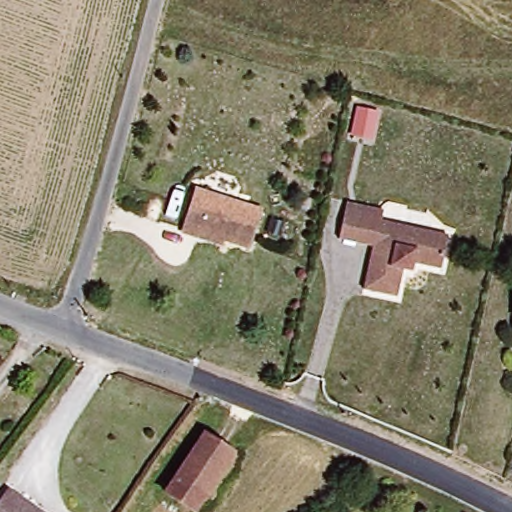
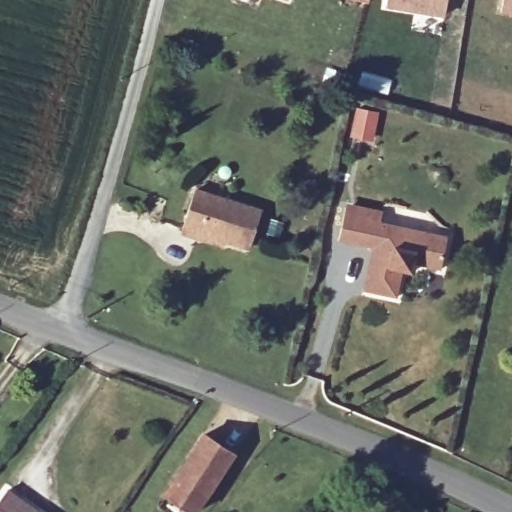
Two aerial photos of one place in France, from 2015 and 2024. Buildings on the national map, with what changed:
new [(368,3),(357,0),(369,0),(368,3)]
new [(385,0),(447,0),(444,17),(384,7),(385,0)]
new [(502,0),(512,0),(512,16),(500,14),(502,0)]
unchanged [(194,189),(260,214),(246,250),(197,232),(195,237),(178,231),(194,189)]
unchanged [(447,235),(439,268),(412,262),(401,271),(395,297),(363,290),(372,246),(337,239),(344,208),(376,216),(383,222),(447,235)]
unchanged [(175,483),(204,438),(226,452),(198,500),(189,512),(182,512),(164,499),(175,483)]
unchanged [(30,512),(0,512),(0,507),(10,495),(30,512)]

